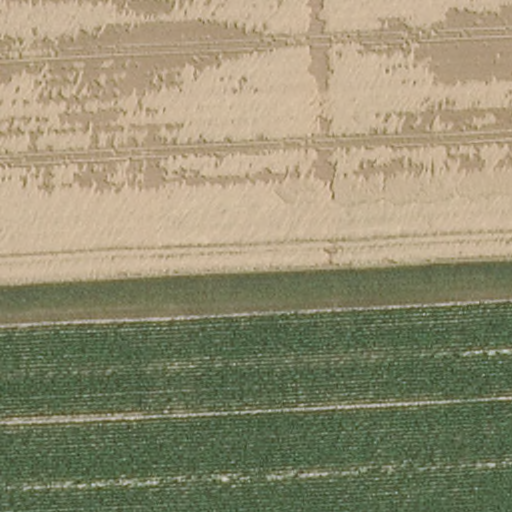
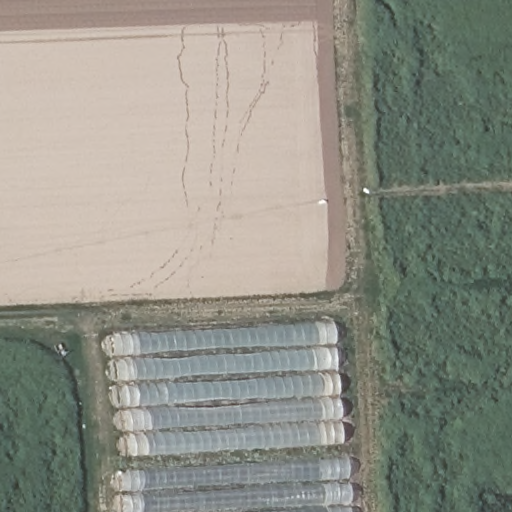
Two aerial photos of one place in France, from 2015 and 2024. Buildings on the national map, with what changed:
new [(334,322),(342,442),(126,457),(111,336),(334,322)]
new [(120,512),(118,471),(346,457),(351,512),(120,512)]

